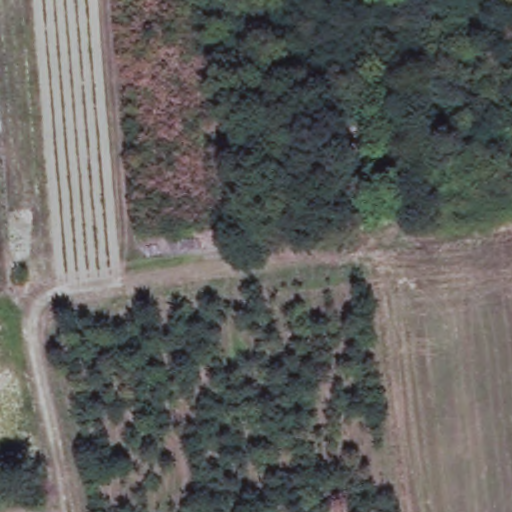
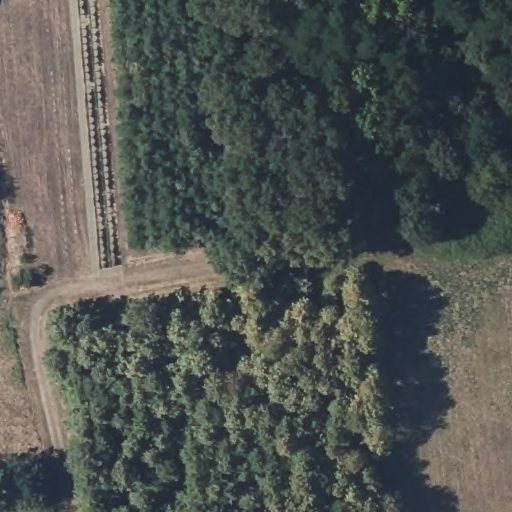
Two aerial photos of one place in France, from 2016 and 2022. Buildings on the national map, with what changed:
unchanged [(353,186),(326,189),(319,153),(346,149),(353,186)]

